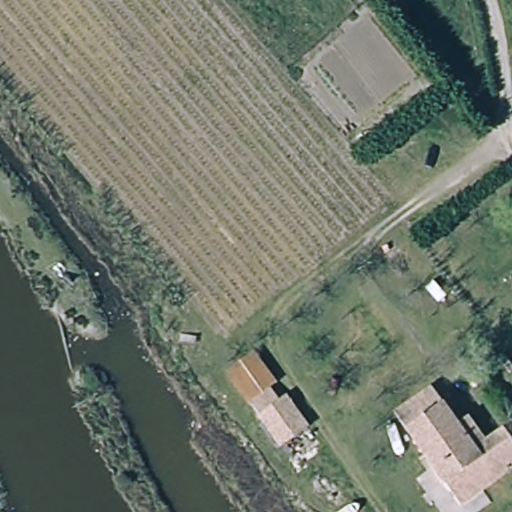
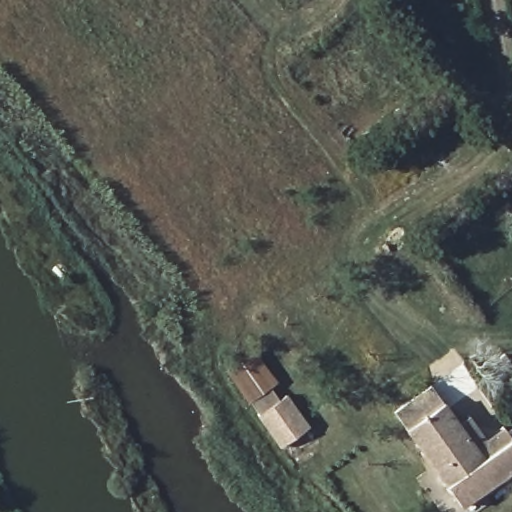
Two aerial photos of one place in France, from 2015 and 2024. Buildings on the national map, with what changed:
unchanged [(276,383),(249,402),(232,376),(259,357),(276,383)]
unchanged [(458,423),(469,414),(486,438),(504,425),(510,436),(512,439),(512,472),(460,507),(446,485),(404,429),(393,413),(430,385),(443,402),(458,423)]
unchanged [(306,427),(278,446),(259,416),(286,397),(306,427)]

